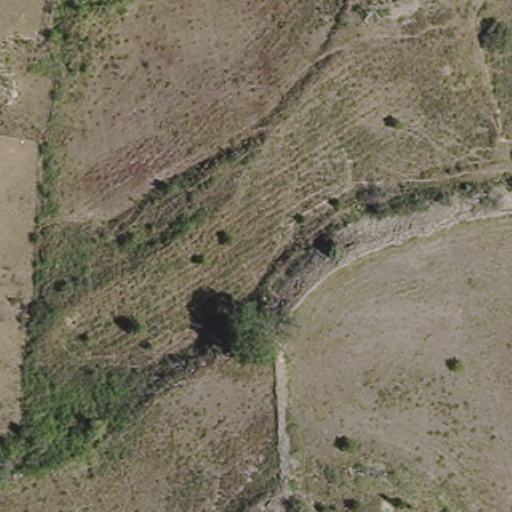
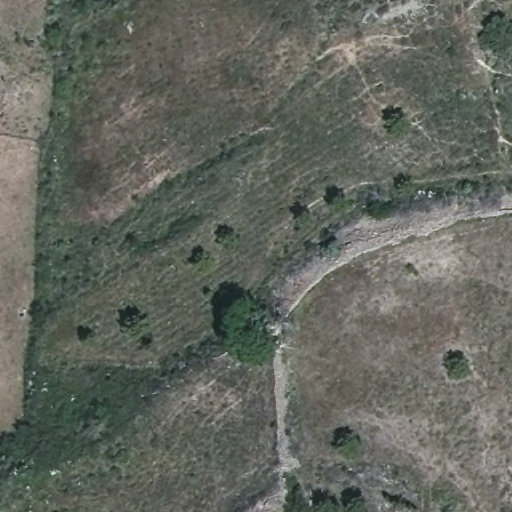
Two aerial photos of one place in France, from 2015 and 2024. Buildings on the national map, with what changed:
[]

